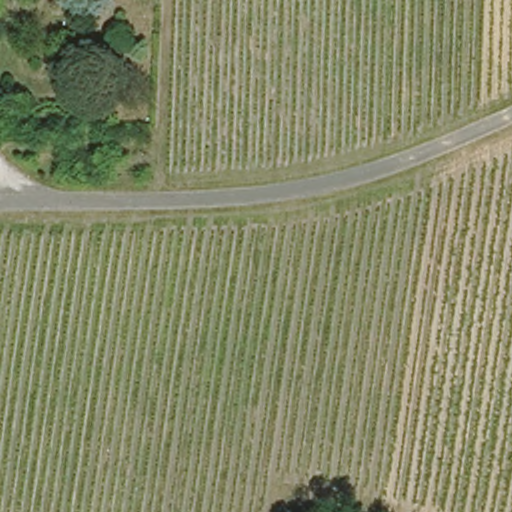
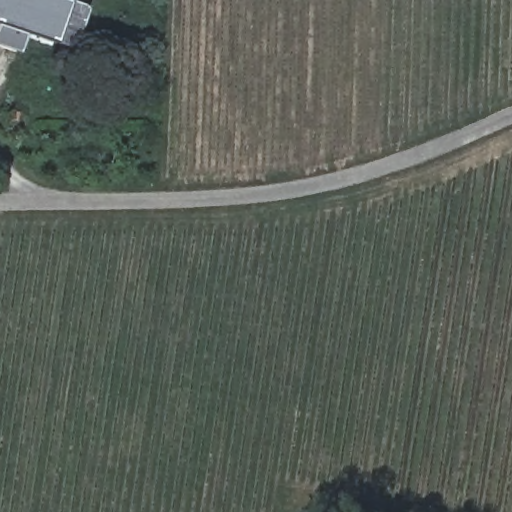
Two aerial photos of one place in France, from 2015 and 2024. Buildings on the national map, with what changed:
new [(72,46),(51,40),(23,31),(17,50),(0,45),(0,0),(72,0),(86,4),(72,46)]

